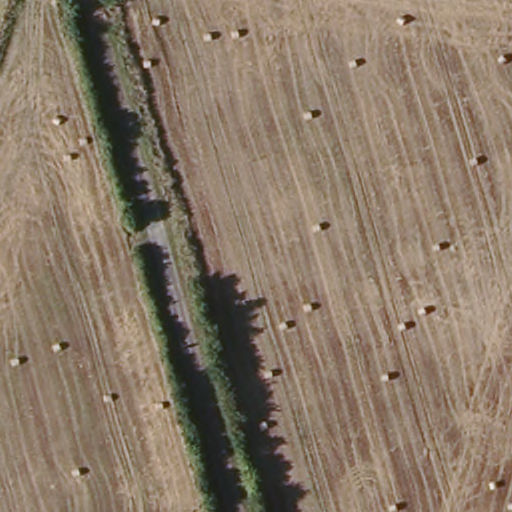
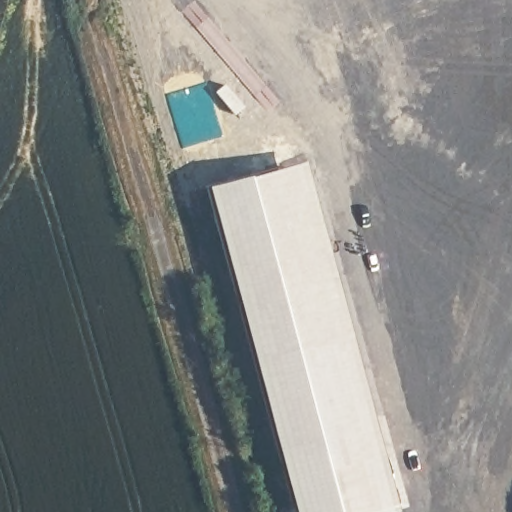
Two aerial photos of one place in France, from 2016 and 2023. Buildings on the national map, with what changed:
new [(301,157),(396,507),(377,512),(293,512),(205,185),(301,157)]

